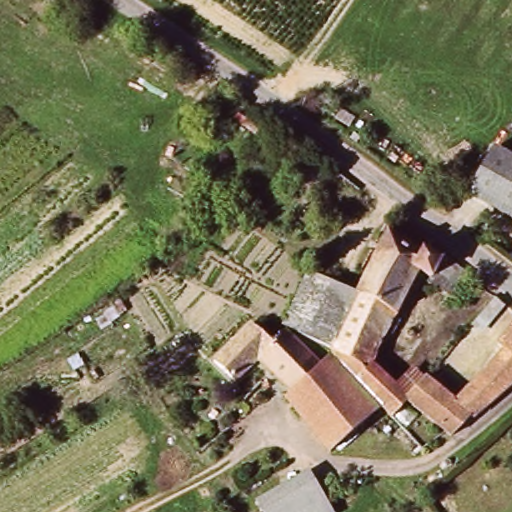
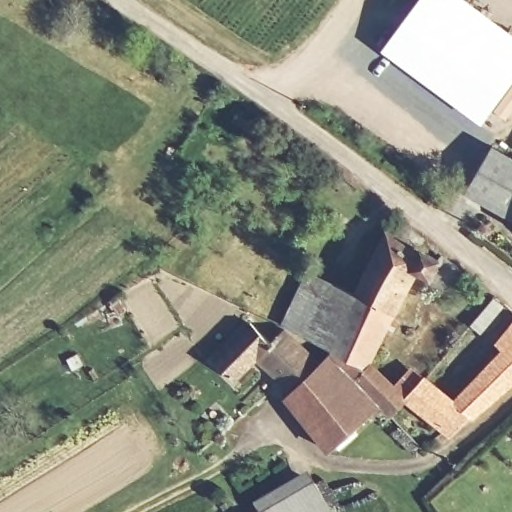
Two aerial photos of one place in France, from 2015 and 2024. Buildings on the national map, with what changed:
new [(512,66),(512,74),(474,125),(378,51),(417,0),(426,0),(512,66)]
new [(512,43),(512,66),(426,0),(455,0),(512,43)]
unchanged [(512,164),(512,222),(465,199),(488,152),(512,164)]
unchanged [(352,296),(390,224),(422,247),(418,254),(433,265),(423,281),(407,274),(359,367),(326,346),(352,296)]
unchanged [(311,275),(352,296),(326,346),(312,362),(285,323),(311,275)]
unchanged [(282,390),(285,388),(255,347),(228,365),(209,338),(256,309),(272,333),(285,323),(312,362),(326,346),(359,367),(351,384),(377,410),(322,448),(282,390)]
unchanged [(424,375),(453,407),(509,351),(497,337),(512,320),(512,378),(446,440),(404,398),(424,375)]
unchanged [(386,418),(377,410),(351,384),(359,367),(404,398),(386,418)]
unchanged [(257,512),(252,505),(270,495),(305,470),(309,477),(332,512),(257,512)]

